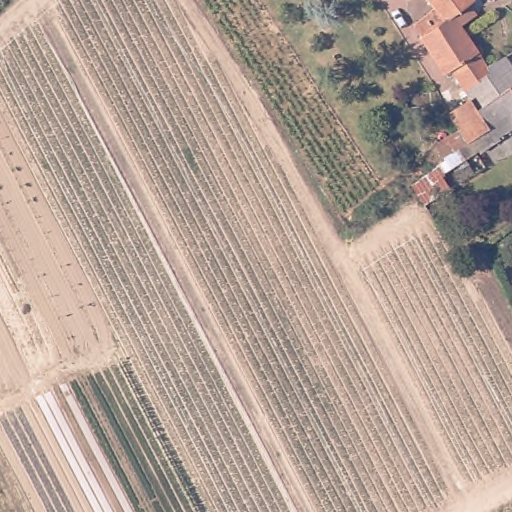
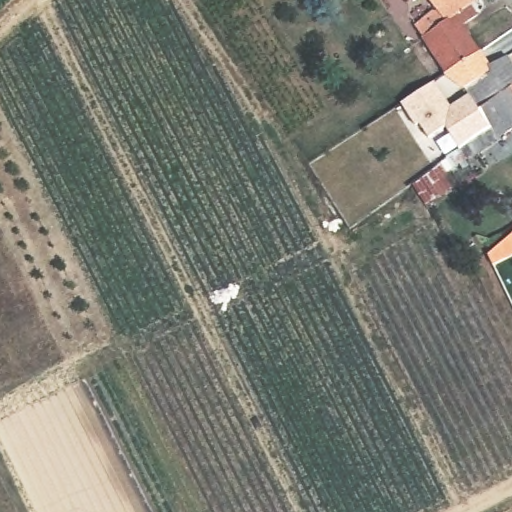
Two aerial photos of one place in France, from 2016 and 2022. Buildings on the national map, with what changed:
unchanged [(472,1),(480,12),(463,24),(490,63),(492,67),(464,83),(454,68),(448,71),(417,23),(429,15),(431,10),(435,9),(439,9),(432,0),(474,0),(472,1)]
unchanged [(494,126),(470,92),(464,83),(492,67),(490,63),(508,54),(512,60),(512,133),(505,137),(510,144),(468,173),(454,155),(453,154),(494,126)]
new [(435,80),(449,104),(461,126),(448,134),(444,127),(428,138),(419,123),(413,126),(399,103),(435,80)]
unchanged [(461,126),(449,104),(470,92),(494,126),(453,154),(447,158),(436,141),(461,126)]

